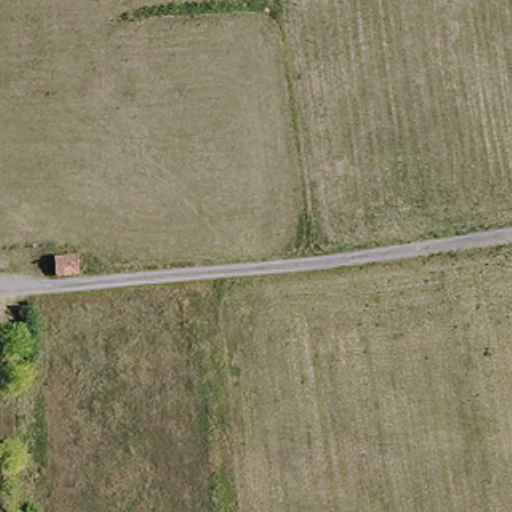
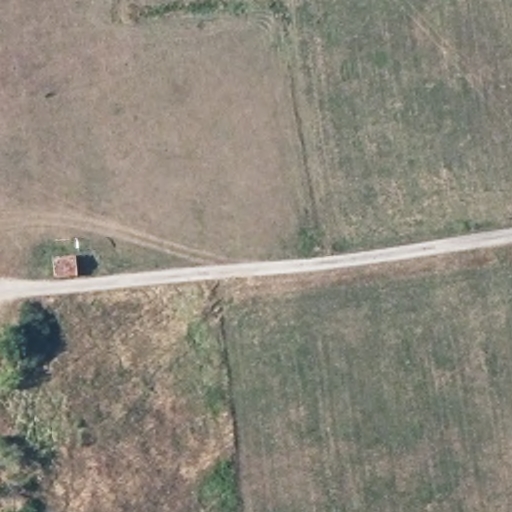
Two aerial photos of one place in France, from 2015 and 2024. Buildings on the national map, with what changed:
unchanged [(73,258),(75,277),(53,277),(51,261),(73,258)]

